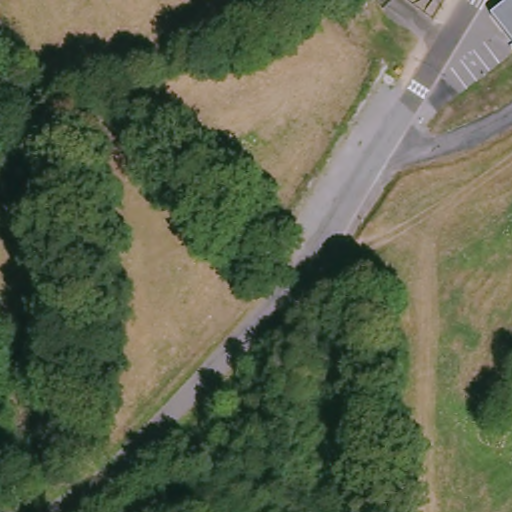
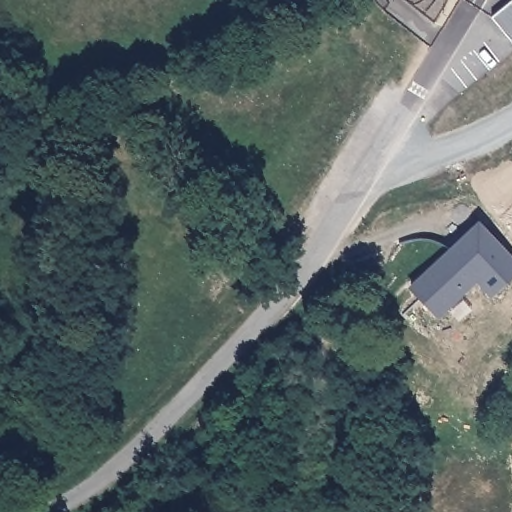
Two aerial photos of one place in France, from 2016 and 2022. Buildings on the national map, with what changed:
unchanged [(491,15),(510,0),(512,0),(512,42),(491,15)]
new [(444,251),(474,225),(512,267),(512,273),(487,295),(470,277),(429,314),(405,287),(435,260),(444,251)]

